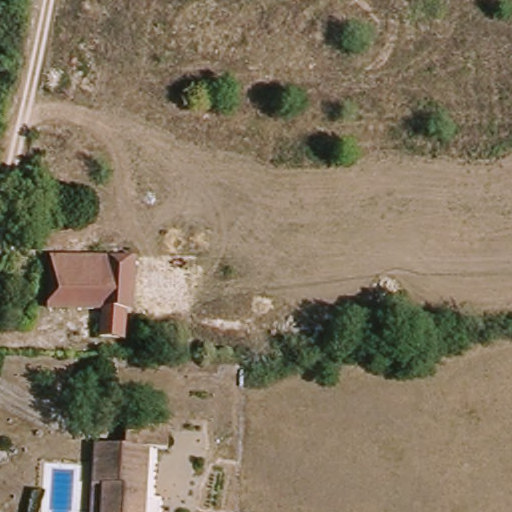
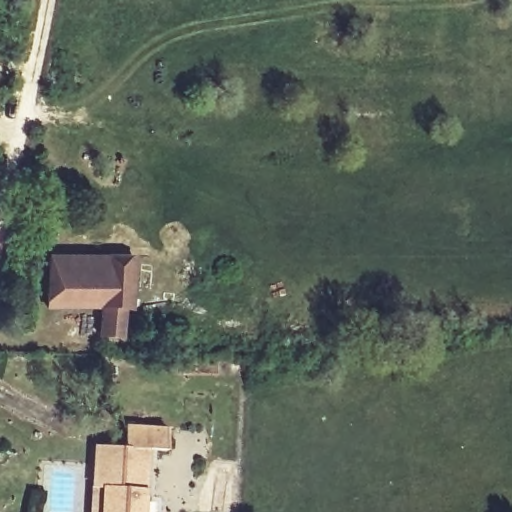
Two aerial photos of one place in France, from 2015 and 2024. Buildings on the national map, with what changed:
unchanged [(46,312),(48,261),(104,261),(104,247),(123,247),(123,258),(136,258),(137,282),(103,283),(103,313),(46,312)]
unchanged [(102,340),(103,313),(126,314),(126,340),(102,340)]
unchanged [(98,442),(120,443),(123,420),(169,425),(166,450),(144,449),(144,512),(95,512),(96,477),(98,442)]

